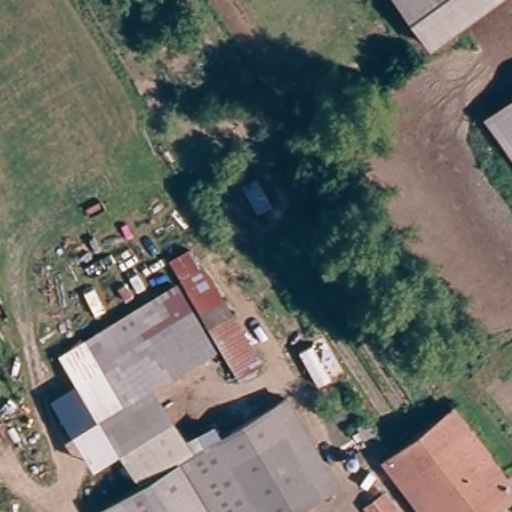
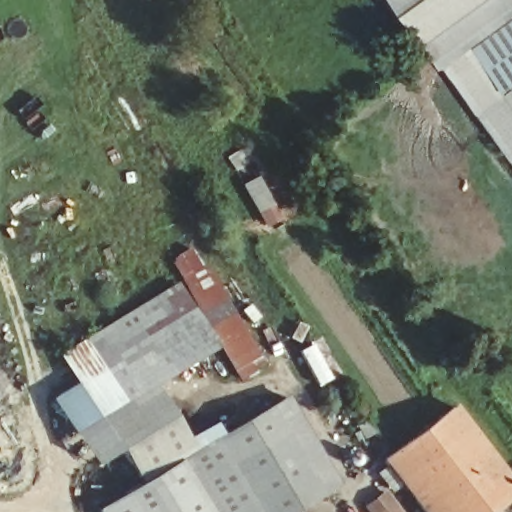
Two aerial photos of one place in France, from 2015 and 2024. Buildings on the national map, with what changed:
unchanged [(433,47),(395,0),(493,0),(433,47)]
new [(433,47),(493,0),(512,0),(512,104),(487,124),(447,70),(433,47)]
unchanged [(512,104),(512,156),(487,124),(512,104)]
unchanged [(200,239),(270,358),(261,363),(265,370),(239,385),(217,351),(180,281),(169,260),(200,239)]
unchanged [(180,281),(217,351),(160,385),(190,438),(215,424),(222,436),(181,460),(139,486),(76,384),(102,369),(84,341),(180,281)]
unchanged [(283,400),(344,506),(334,512),(211,512),(181,460),(222,436),(283,400)]
unchanged [(421,512),(386,461),(456,404),(512,480),(512,493),(488,512),(421,512)]
unchanged [(139,486),(181,460),(211,512),(99,512),(98,509),(139,486)]
unchanged [(396,512),(373,512),(386,500),(396,512)]

